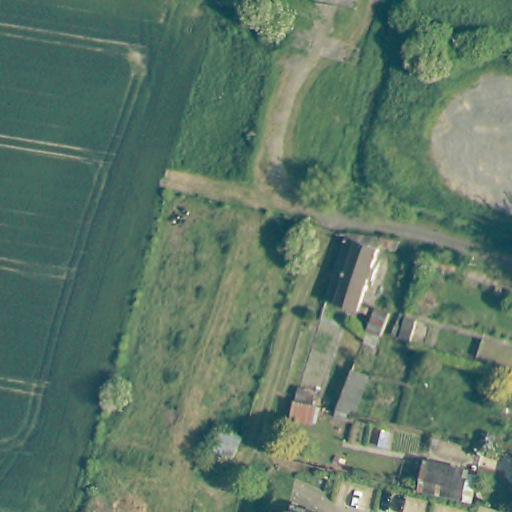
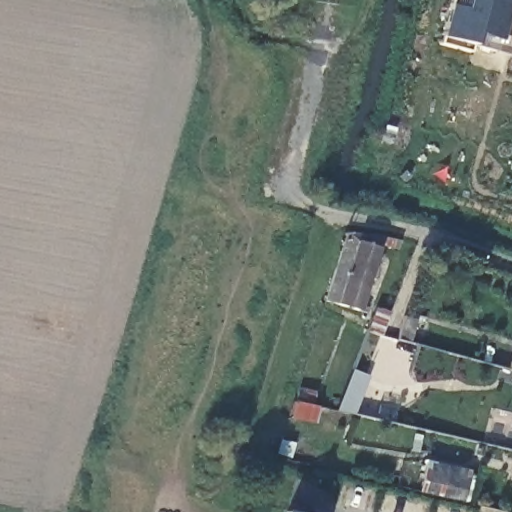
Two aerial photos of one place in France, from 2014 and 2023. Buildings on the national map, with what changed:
new [(452,0),(512,0),(512,55),(510,55),(471,45),(470,50),(440,42),(452,0)]
demolished [(449,58),(448,59),(432,52),(438,37),(455,42),(449,58)]
unchanged [(358,307),(365,309),(363,314),(322,299),(342,232),(381,237),(358,307)]
unchanged [(365,332),(374,309),(388,315),(378,338),(365,332)]
unchanged [(366,378),(350,415),(332,411),(349,371),(366,378)]
unchanged [(481,457),(473,456),(475,445),(482,447),(481,457)]
unchanged [(419,492),(426,463),(468,475),(461,502),(419,492)]

